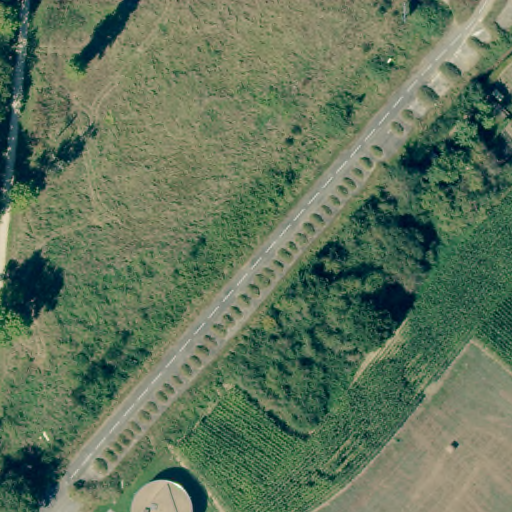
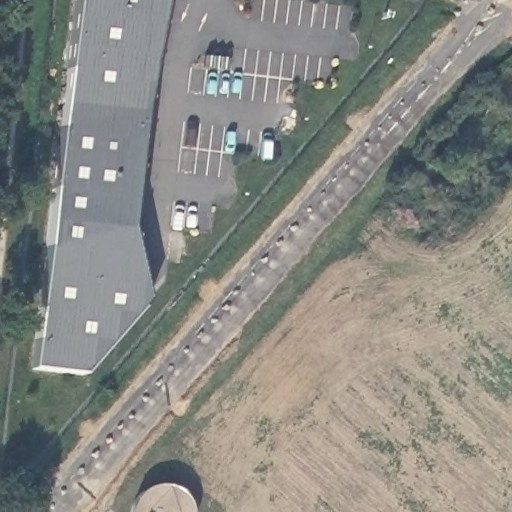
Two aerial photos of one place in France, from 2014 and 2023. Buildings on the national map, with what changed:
new [(131,230),(147,300),(83,374),(32,369),(74,0),(164,0),(131,230)]
unchanged [(132,500),(135,492),(143,485),(154,480),(160,480),(172,482),(181,487),(186,494),(189,500),(191,506),(191,512),(129,512),(129,510),(132,500)]

